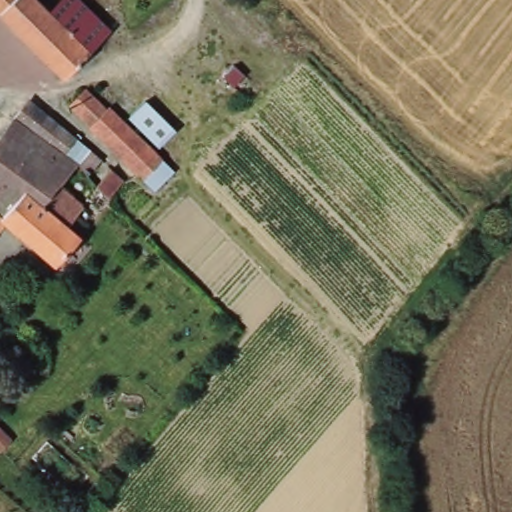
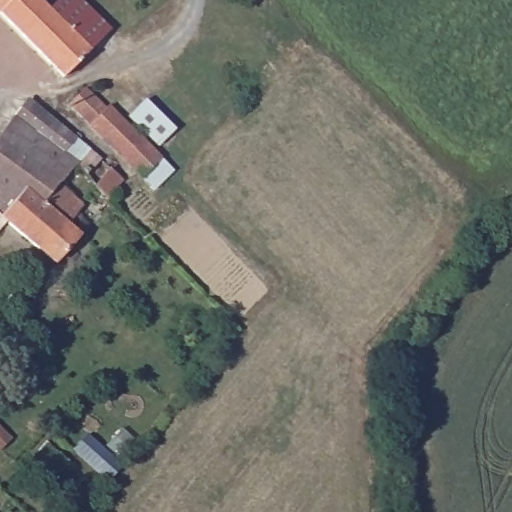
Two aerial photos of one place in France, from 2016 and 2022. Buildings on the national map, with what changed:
unchanged [(64,78),(0,14),(0,0),(40,0),(48,8),(90,51),(64,78)]
unchanged [(58,0),(84,0),(114,30),(90,51),(48,8),(58,0)]
unchanged [(233,64),(244,75),(232,86),(222,75),(233,64)]
unchanged [(154,194),(143,182),(68,108),(87,90),(107,110),(110,107),(164,160),(176,172),(154,194)]
unchanged [(30,94),(101,154),(87,170),(78,159),(59,179),(42,199),(25,185),(1,212),(0,211),(0,133),(30,94)]
unchanged [(146,101),(176,130),(158,148),(128,118),(146,101)]
unchanged [(1,212),(25,185),(42,199),(59,179),(82,198),(96,182),(111,164),(123,175),(110,192),(112,194),(78,231),(54,258),(6,217),(0,225),(0,211),(1,212)]
unchanged [(10,435),(0,446),(0,424),(10,435)]

